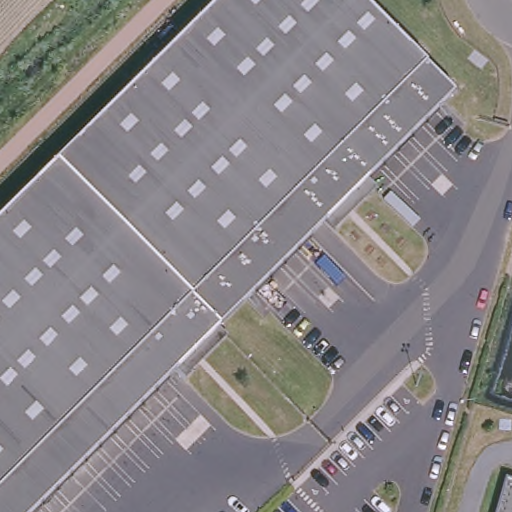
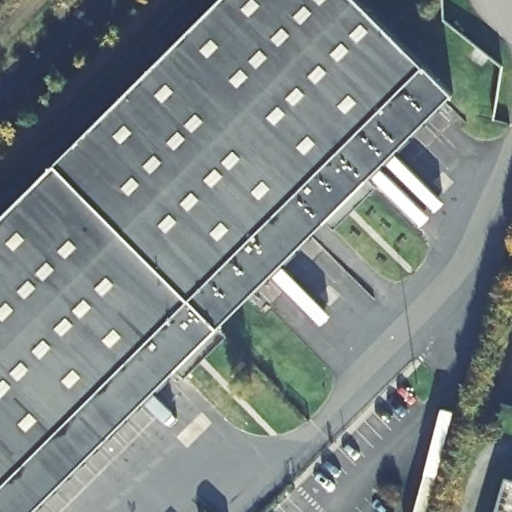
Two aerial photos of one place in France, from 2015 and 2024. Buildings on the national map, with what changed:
unchanged [(171,360),(18,512),(0,512),(0,203),(204,0),(366,0),(449,83),(362,170),(371,178),(329,220),(320,211),(214,317),(222,326),(180,369),(171,360)]
unchanged [(496,512),(505,479),(512,481),(512,512),(496,512)]

